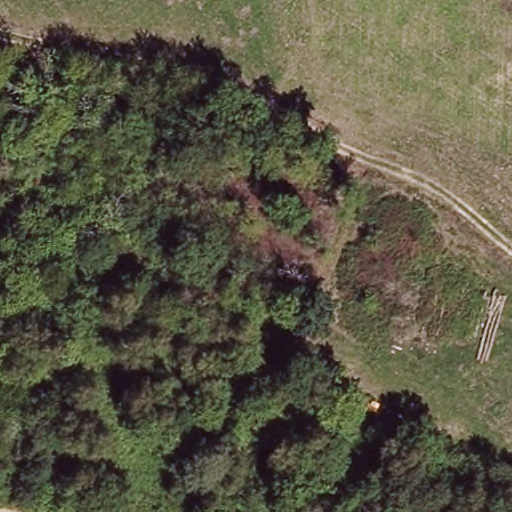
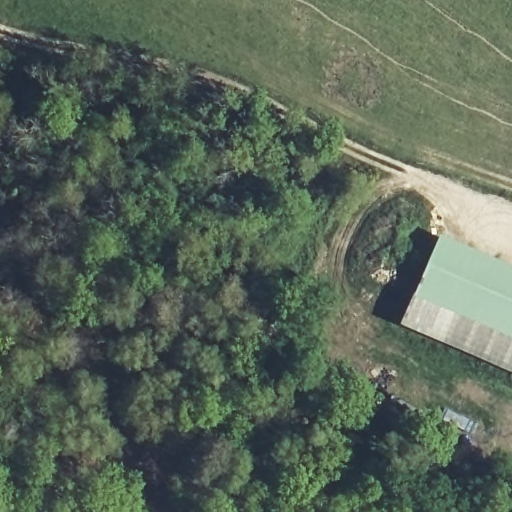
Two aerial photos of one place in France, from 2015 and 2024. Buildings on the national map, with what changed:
new [(440,235),(512,267),(512,380),(394,329),(440,235)]

